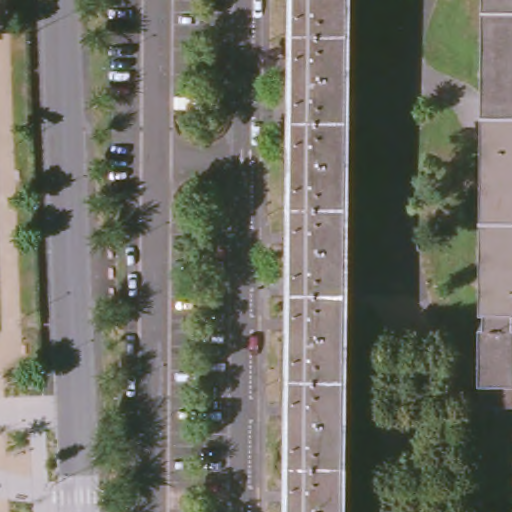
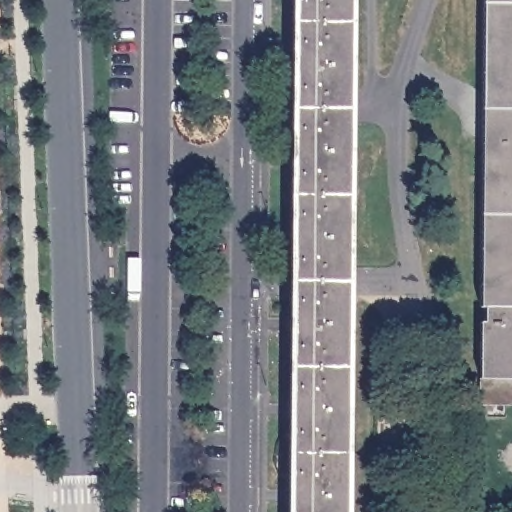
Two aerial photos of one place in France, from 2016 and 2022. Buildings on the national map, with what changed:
unchanged [(344,512),(290,512),(295,0),(349,0),(344,512)]
unchanged [(480,0),(512,0),(512,305),(511,305),(510,320),(512,320),(512,401),(477,400),(478,369),(478,319),(483,319),(483,305),(478,304),(480,0)]

